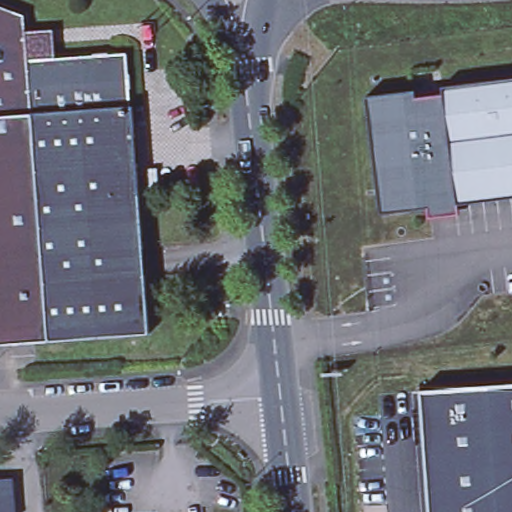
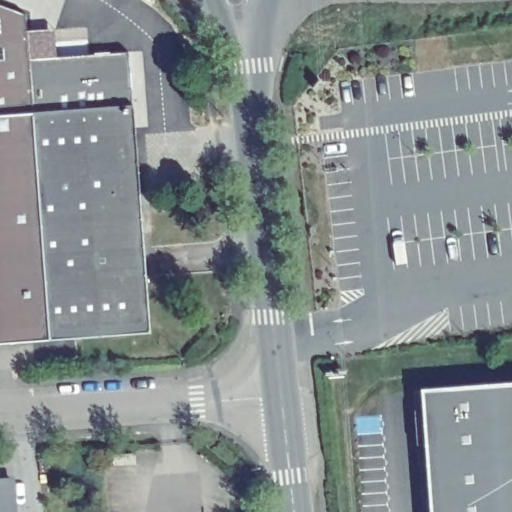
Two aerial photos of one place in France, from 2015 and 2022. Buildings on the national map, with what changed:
unchanged [(153,335),(0,344),(0,5),(27,15),(29,33),(57,30),(59,58),(130,53),(134,105),(153,335)]
demolished [(415,90),(417,98),(445,94),(444,85),(512,77),(512,194),(458,200),(459,212),(431,215),(430,206),(382,211),(368,96),(415,90)]
unchanged [(422,389),(512,383),(512,512),(423,512),(414,390),(422,389)]
unchanged [(20,512),(0,512),(0,479),(19,477),(20,512)]

